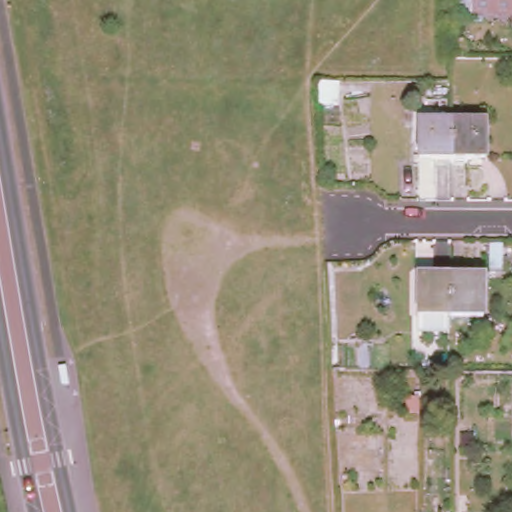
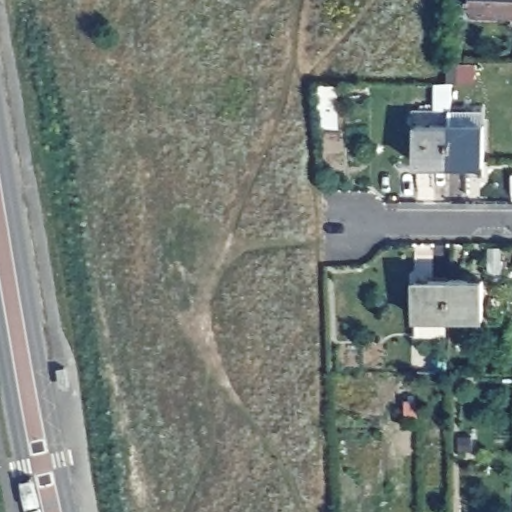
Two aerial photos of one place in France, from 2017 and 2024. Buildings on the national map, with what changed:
unchanged [(460,0),(512,0),(512,11),(460,10),(460,0)]
unchanged [(417,163),(418,122),(449,123),(449,163),(417,163)]
unchanged [(484,124),(484,164),(449,163),(449,123),(484,124)]
unchanged [(416,320),(416,280),(448,280),(448,321),(416,320)]
unchanged [(482,281),(482,321),(448,321),(448,280),(482,281)]
unchanged [(406,401),(416,401),(416,418),(406,419),(406,401)]

